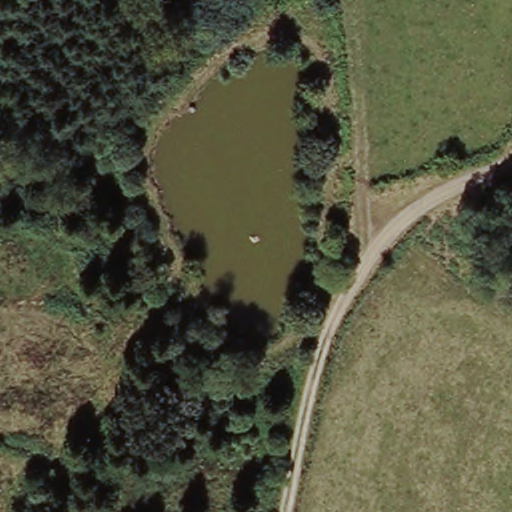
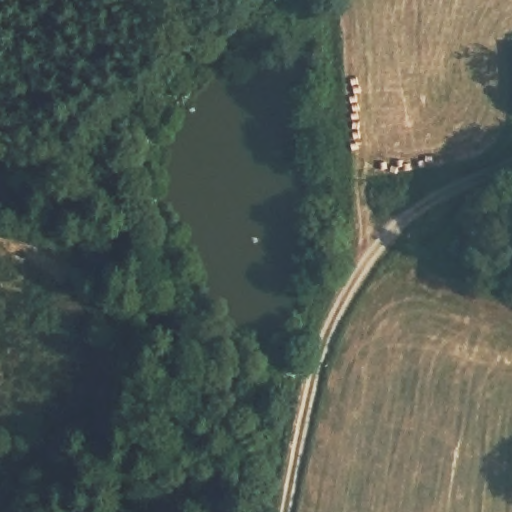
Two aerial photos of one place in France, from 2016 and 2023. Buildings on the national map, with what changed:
unchanged [(512,114),(508,114),(509,52),(512,52),(512,114)]

